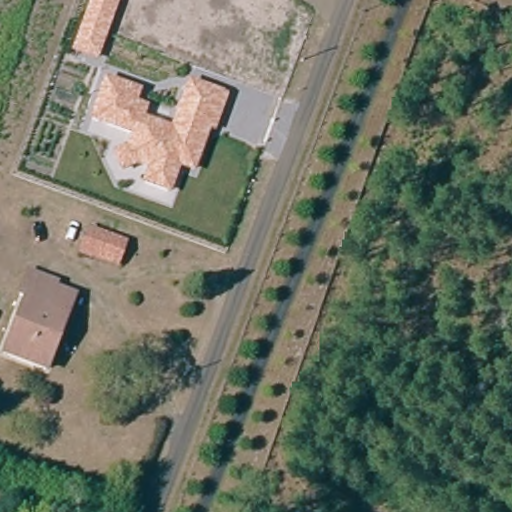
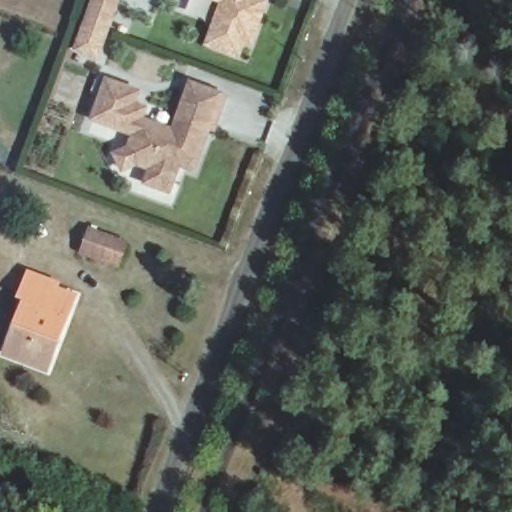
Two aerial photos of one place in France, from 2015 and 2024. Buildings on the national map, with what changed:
unchanged [(72,52),(90,0),(120,0),(98,61),(72,52)]
new [(261,3),(246,44),(239,41),(234,56),(212,48),(217,33),(210,31),(220,3),(211,0),(252,0),(261,3)]
unchanged [(230,93),(217,133),(212,132),(196,174),(179,169),(170,195),(141,184),(147,169),(137,166),(121,173),(112,152),(127,146),(131,136),(87,122),(102,75),(142,90),(138,103),(149,106),(146,117),(170,126),(187,79),(230,93)]
unchanged [(115,266),(81,254),(89,231),(124,243),(115,266)]
unchanged [(6,363),(21,324),(25,311),(17,306),(25,286),(29,277),(60,288),(58,296),(71,301),(64,320),(50,360),(45,375),(6,363)]

